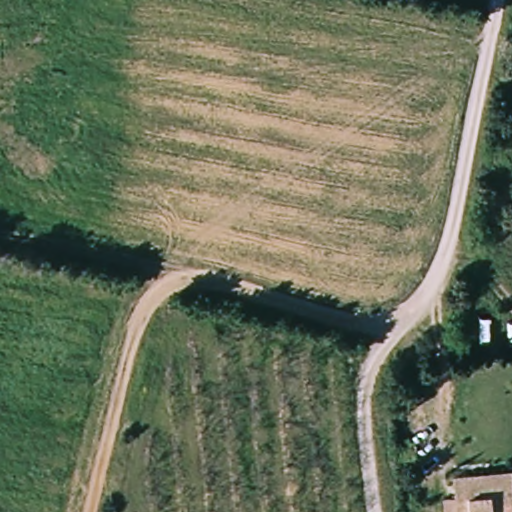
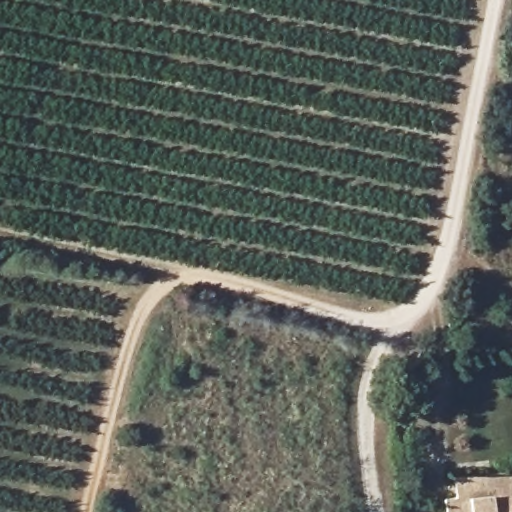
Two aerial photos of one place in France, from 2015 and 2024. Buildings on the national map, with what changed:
unchanged [(512,482),(512,512),(442,512),(441,501),(453,500),(451,478),(511,472),(512,482)]

